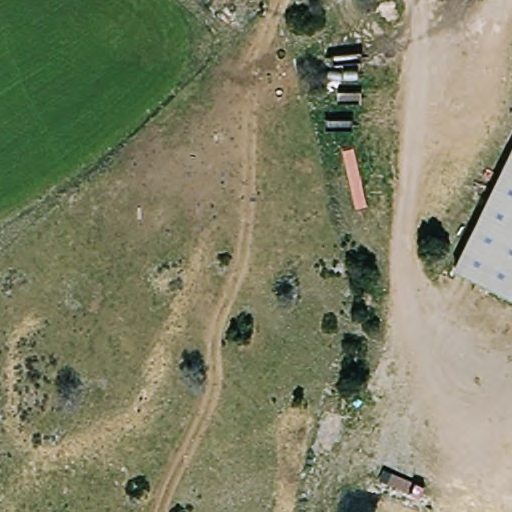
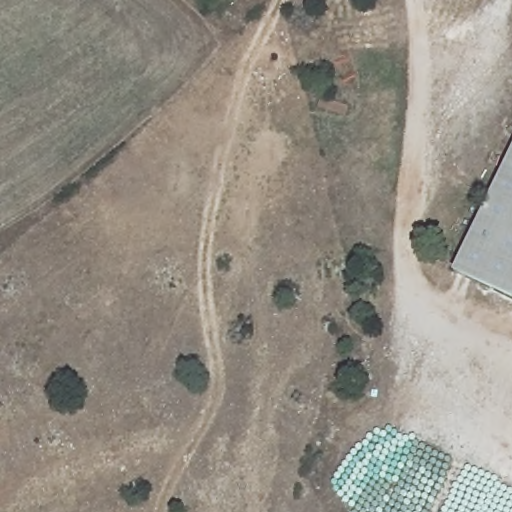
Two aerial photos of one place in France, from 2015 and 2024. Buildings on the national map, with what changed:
unchanged [(512,150),(512,300),(453,272),(512,150)]

